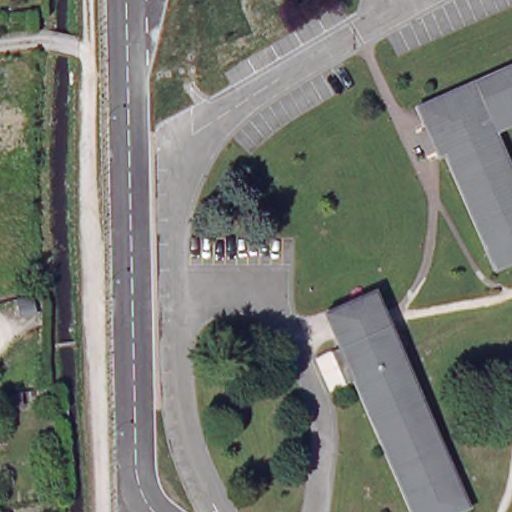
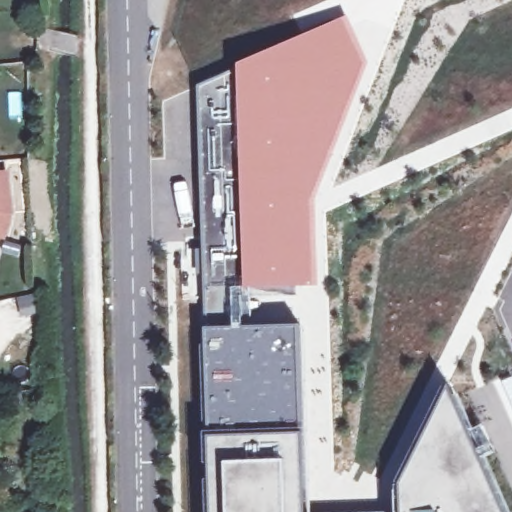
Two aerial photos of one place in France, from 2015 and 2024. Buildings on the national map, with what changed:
new [(332,27),(349,62),(297,201),(301,283),(235,285),(234,301),(206,301),(198,86),(332,27)]
demolished [(489,253),(446,152),(440,155),(416,101),(512,59),(512,120),(499,126),(512,157),(512,260),(496,267),(489,253)]
new [(5,176),(8,217),(0,241),(0,176),(5,176)]
new [(302,433),(304,512),(213,512),(211,437),(207,329),(298,325),(302,433)]
demolished [(394,330),(472,508),(464,512),(411,512),(355,381),(341,347),(392,325),(394,330)]
new [(404,511),(402,486),(449,390),(503,512),(329,512),(404,511)]
unchanged [(3,397),(20,394),(21,406),(4,408),(3,397)]

